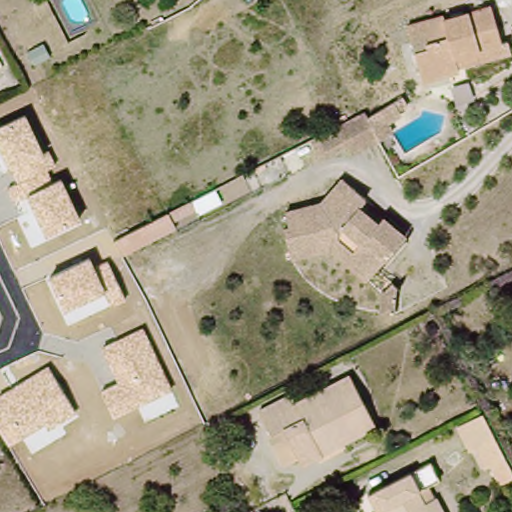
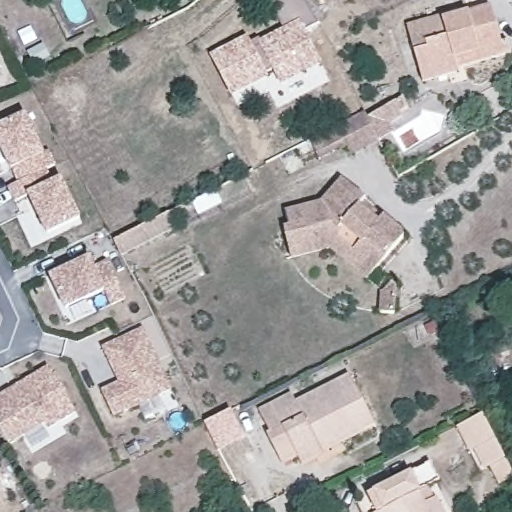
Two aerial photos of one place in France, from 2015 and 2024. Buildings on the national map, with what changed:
unchanged [(448,74),(413,85),(396,31),(430,20),(434,23),(457,16),(453,0),(490,0),(492,5),(480,9),(492,45),(495,55),(447,71),(448,74)]
unchanged [(507,0),(512,0),(512,11),(507,0)]
new [(247,34),(251,42),(281,27),(298,20),(304,31),(321,63),(280,85),(274,72),(231,96),(208,55),(247,34)]
unchanged [(28,196),(15,202),(8,187),(17,182),(0,148),(0,126),(27,114),(45,151),(50,148),(58,167),(49,171),(53,181),(62,177),(83,217),(47,235),(28,196)]
unchanged [(364,115),(377,144),(351,155),(347,146),(314,160),(306,140),(364,115)]
unchanged [(325,249),(286,259),(285,252),(278,230),(284,228),(280,212),(317,203),(338,179),(362,199),(359,202),(379,219),(400,237),(370,273),(363,282),(325,249)]
unchanged [(191,202),(195,212),(172,223),(175,231),(119,257),(111,240),(191,202)]
unchanged [(112,307),(104,292),(65,312),(48,275),(91,256),(96,265),(109,259),(127,300),(112,307)]
unchanged [(173,387),(114,417),(101,391),(118,382),(102,347),(143,327),(173,387)]
unchanged [(49,429),(46,426),(10,446),(0,430),(0,393),(48,364),(76,412),(49,429)]
unchanged [(313,443),(320,458),(300,470),(296,462),(282,470),(267,442),(271,440),(257,415),(289,397),(294,406),(347,377),(365,415),(313,443)]
unchanged [(373,430),(320,458),(313,443),(365,415),(373,430)]
unchanged [(477,417),(500,462),(482,472),(473,453),(469,456),(455,430),(477,417)]
unchanged [(375,512),(378,510),(370,492),(432,461),(440,480),(427,486),(434,497),(436,497),(443,512),(374,512),(375,512)]

